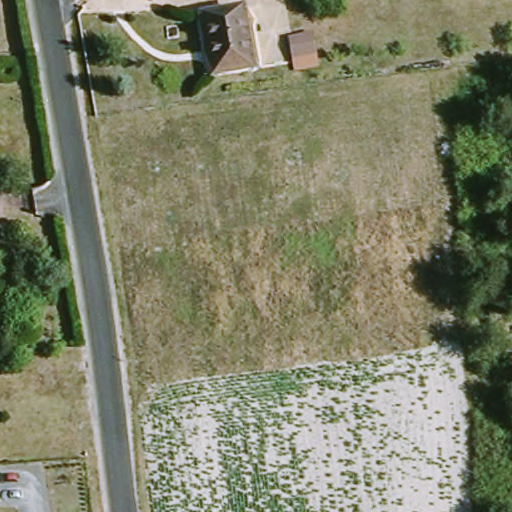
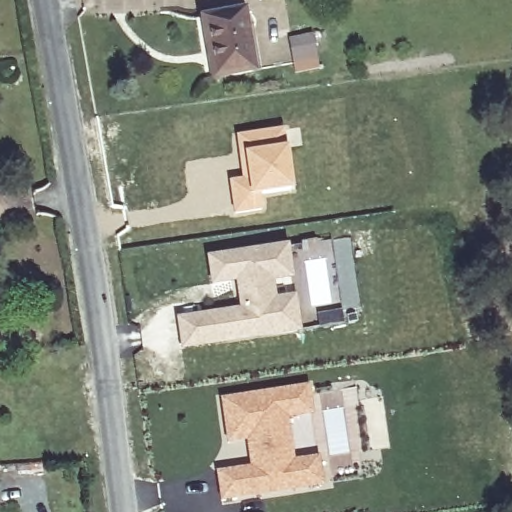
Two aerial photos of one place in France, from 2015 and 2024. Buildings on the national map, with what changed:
unchanged [(255,74),(215,84),(210,58),(206,57),(200,19),(240,11),(255,74)]
new [(321,69),(295,75),(287,37),(313,33),(321,69)]
new [(300,127),(304,146),(287,149),(293,190),(260,195),(263,210),(237,213),(232,183),(245,181),(239,138),(300,127)]
new [(207,256),(288,244),(294,279),(273,283),(276,298),(295,295),(301,332),(180,349),(176,317),(239,308),(236,282),(211,285),(207,256)]
new [(308,387),(323,484),(224,500),(219,473),(253,467),(249,438),(229,440),(223,400),(308,387)]

